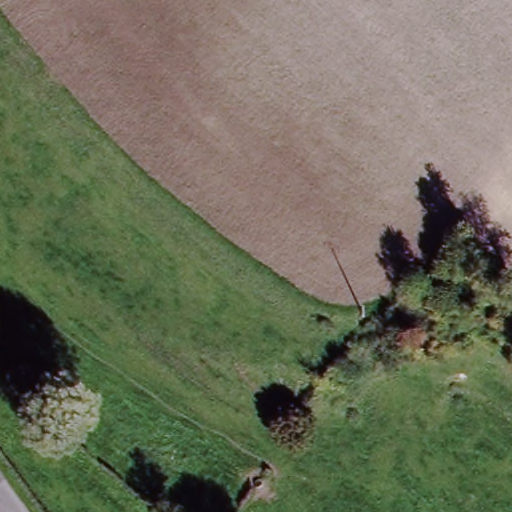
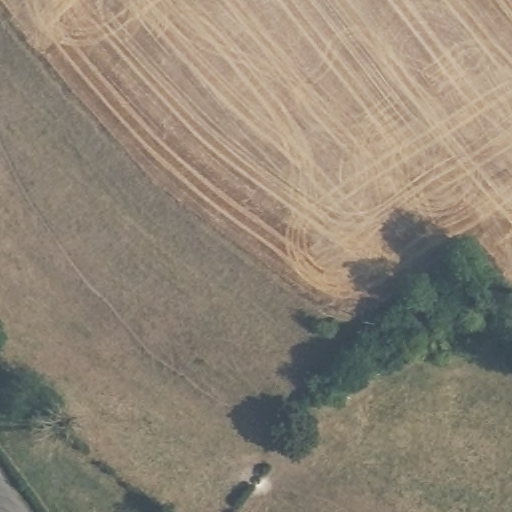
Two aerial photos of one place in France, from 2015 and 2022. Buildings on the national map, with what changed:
[]

